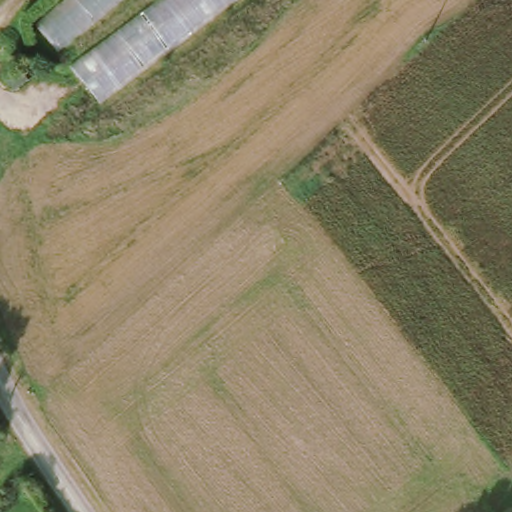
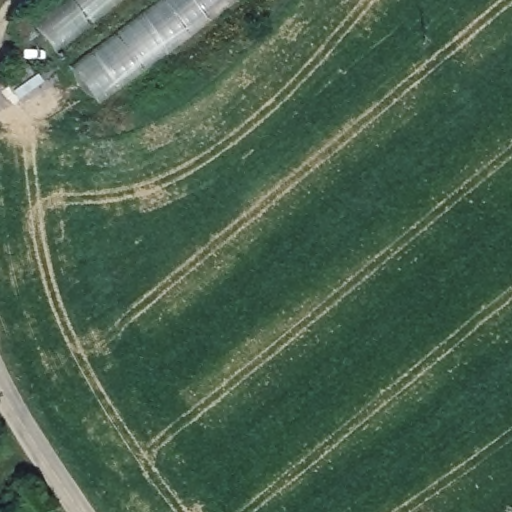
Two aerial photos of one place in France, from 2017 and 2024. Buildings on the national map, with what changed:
unchanged [(36,24),(64,0),(119,0),(57,51),(36,24)]
unchanged [(156,0),(233,0),(98,102),(70,64),(156,0)]

